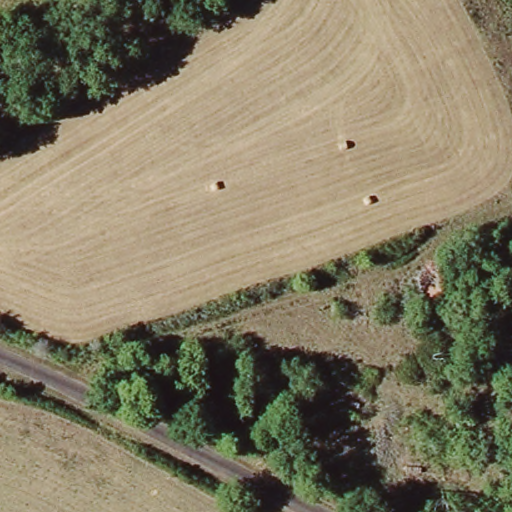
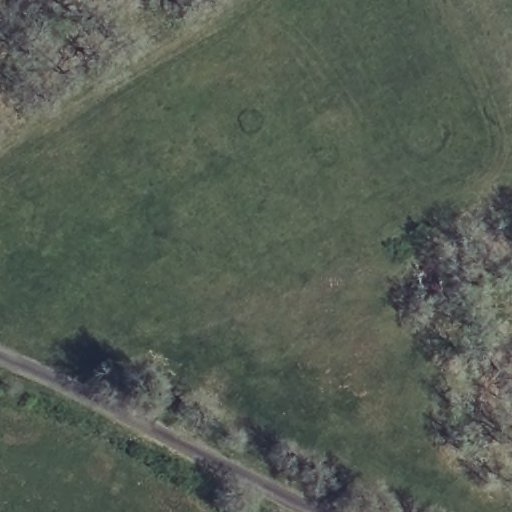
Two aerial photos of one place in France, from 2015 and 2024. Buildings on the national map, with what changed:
unchanged [(437,298),(417,299),(414,272),(435,269),(437,298)]

